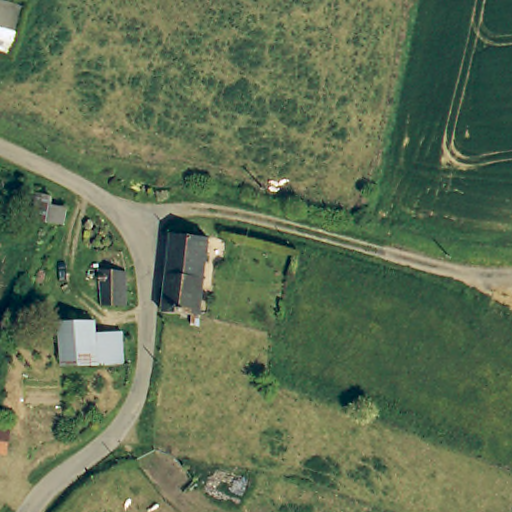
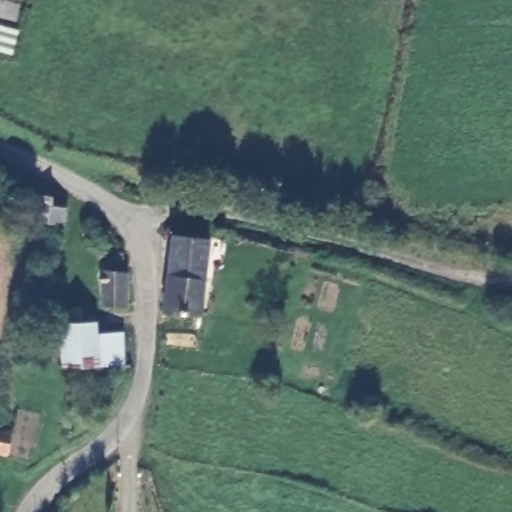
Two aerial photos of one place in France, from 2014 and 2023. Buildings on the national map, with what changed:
unchanged [(16,53),(2,50),(9,26),(0,24),(0,0),(29,0),(16,53)]
unchanged [(70,229),(50,223),(29,222),(36,195),(59,199),(55,208),(72,213),(70,229)]
unchanged [(167,269),(170,237),(211,243),(206,275),(167,269)]
unchanged [(104,302),(107,268),(127,272),(123,305),(104,302)]
unchanged [(203,316),(163,309),(167,269),(206,275),(209,275),(203,316)]
unchanged [(66,359),(66,355),(69,314),(105,320),(104,330),(134,334),(131,360),(130,366),(102,363),(66,359)]

